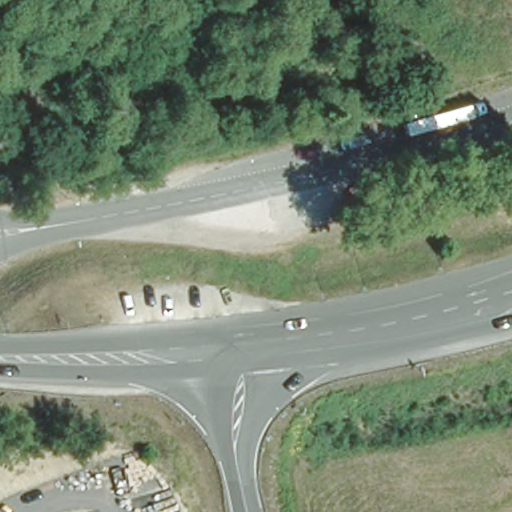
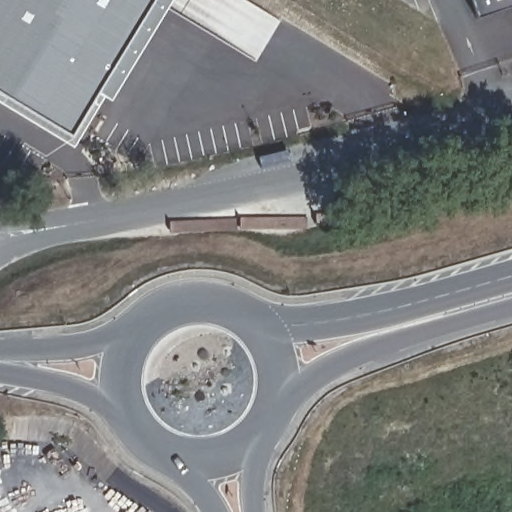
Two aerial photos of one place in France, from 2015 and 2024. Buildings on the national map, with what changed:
new [(109,95),(77,146),(0,100),(0,0),(174,0),(115,99),(109,95)]
new [(475,0),(512,0),(512,4),(480,16),(475,0)]

